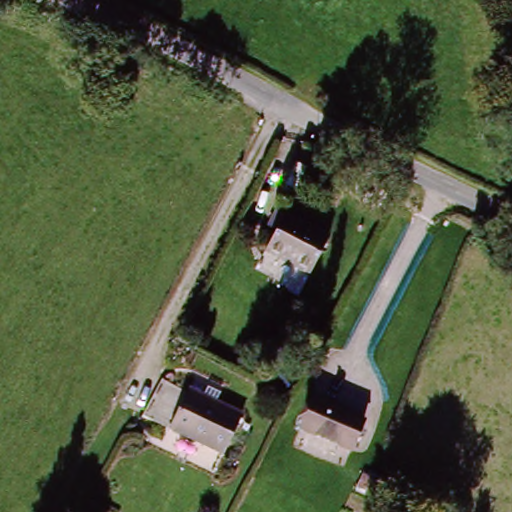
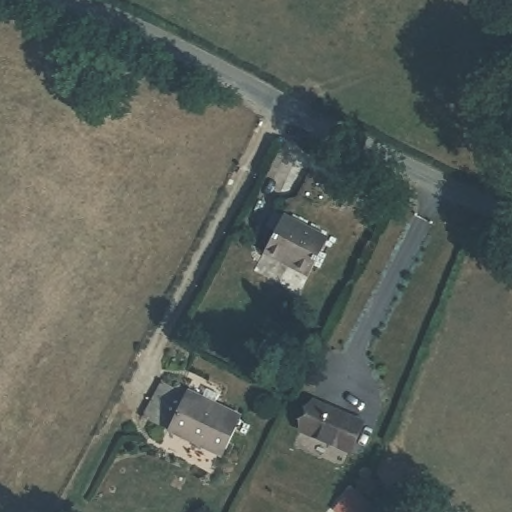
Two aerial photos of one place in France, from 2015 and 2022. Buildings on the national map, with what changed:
unchanged [(272,242),(287,214),(330,237),(311,273),(285,259),(287,252),(272,242)]
unchanged [(172,429),(191,393),(242,422),(224,458),(172,429)]
unchanged [(363,427),(350,455),(302,433),(315,405),(363,427)]

